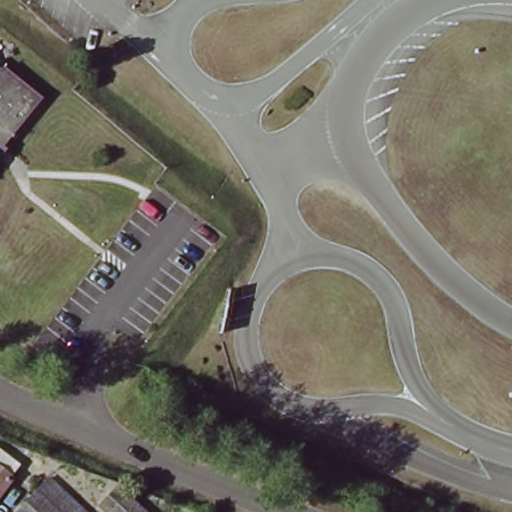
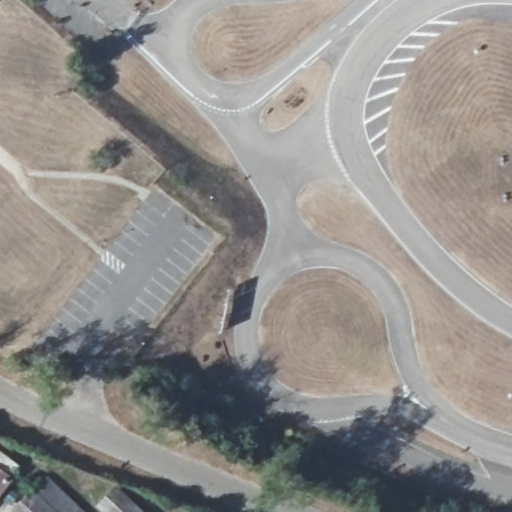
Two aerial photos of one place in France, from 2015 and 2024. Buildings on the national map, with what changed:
demolished [(0,156),(0,69),(2,66),(42,98),(37,105),(3,146),(7,149),(0,156)]
unchanged [(0,468),(13,478),(0,495),(0,468)]
unchanged [(34,492),(49,477),(85,512),(55,512),(34,492)]
unchanged [(34,492),(55,512),(14,512),(34,492)]
unchanged [(130,497),(145,512),(115,512),(130,497)]

